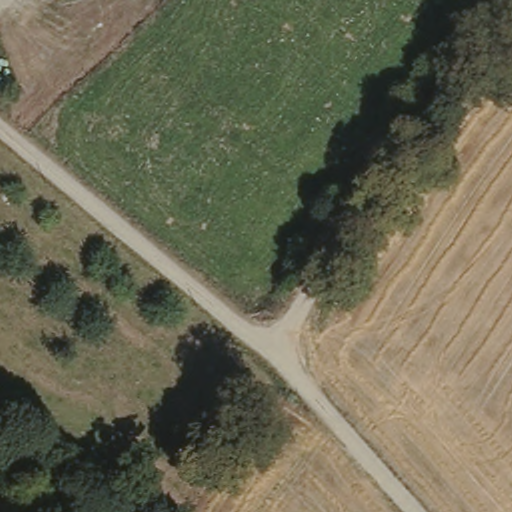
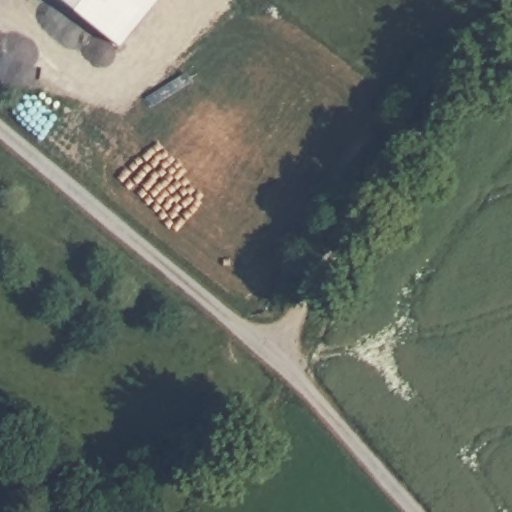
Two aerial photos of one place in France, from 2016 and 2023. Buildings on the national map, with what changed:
new [(119,41),(67,0),(152,0),(119,41)]

